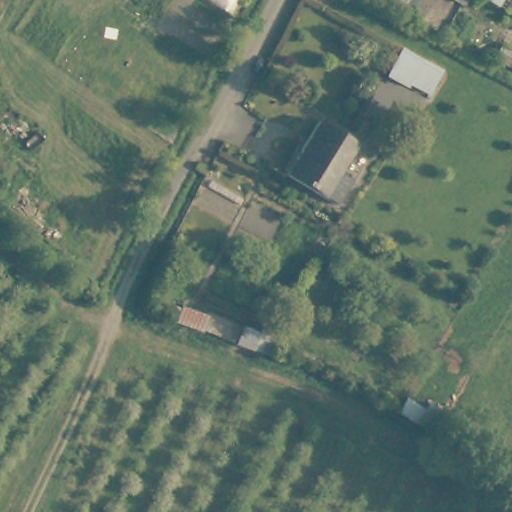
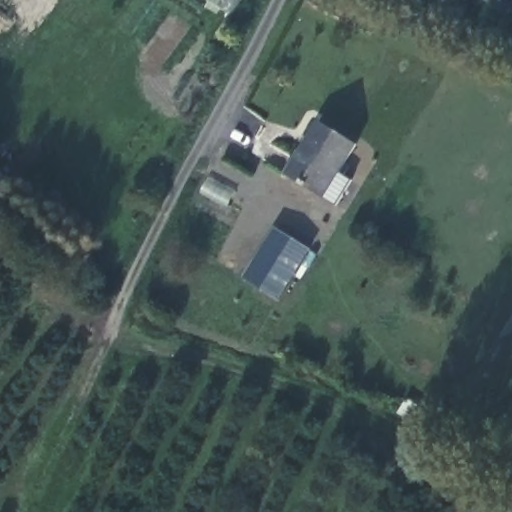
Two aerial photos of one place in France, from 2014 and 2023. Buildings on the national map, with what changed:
unchanged [(397,11),(379,0),(404,0),(397,11)]
unchanged [(497,14),(475,0),(506,0),(497,14)]
unchanged [(357,146),(340,174),(353,183),(339,207),(288,174),(321,122),(357,146)]
new [(278,300),(243,278),(275,227),(311,249),(278,300)]

